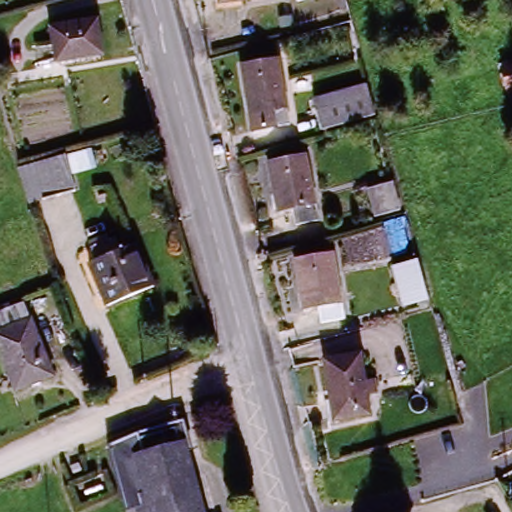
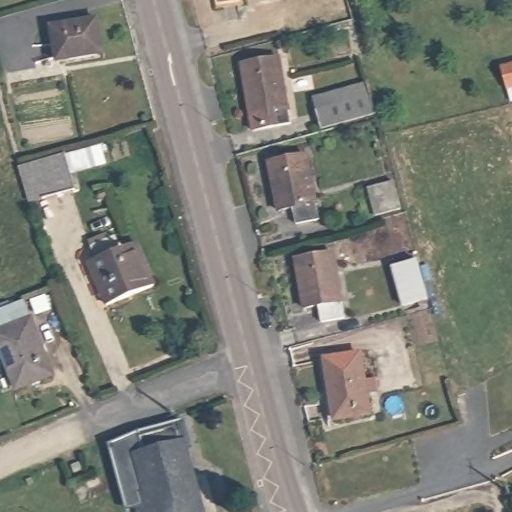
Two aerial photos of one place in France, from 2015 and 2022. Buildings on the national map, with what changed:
unchanged [(224,8),(223,0),(269,0),(224,8)]
unchanged [(57,58),(54,23),(98,19),(101,53),(57,58)]
unchanged [(256,112),(246,64),(280,57),(294,125),(271,127),(259,127),(256,112)]
unchanged [(501,66),(512,64),(512,89),(509,91),(501,66)]
unchanged [(376,106),(319,122),(315,105),(344,97),(342,87),(369,80),(376,106)]
unchanged [(23,163),(95,148),(99,168),(72,174),(78,190),(32,200),(23,163)]
unchanged [(324,217),(301,221),(297,206),(283,207),(273,160),(309,156),(324,217)]
unchanged [(368,190),(395,183),(402,209),(378,218),(368,190)]
unchanged [(98,261),(95,246),(123,237),(129,251),(144,246),(156,287),(104,304),(91,263),(98,261)]
unchanged [(329,315),(325,303),(316,303),(306,257),(341,250),(353,313),(329,315)]
unchanged [(406,300),(397,268),(419,261),(428,294),(406,300)]
unchanged [(0,311),(28,299),(59,376),(23,397),(0,344),(0,311)]
unchanged [(369,412),(339,418),(326,360),(356,353),(369,412)]
unchanged [(186,443),(207,512),(147,512),(143,498),(153,494),(143,456),(186,443)]

